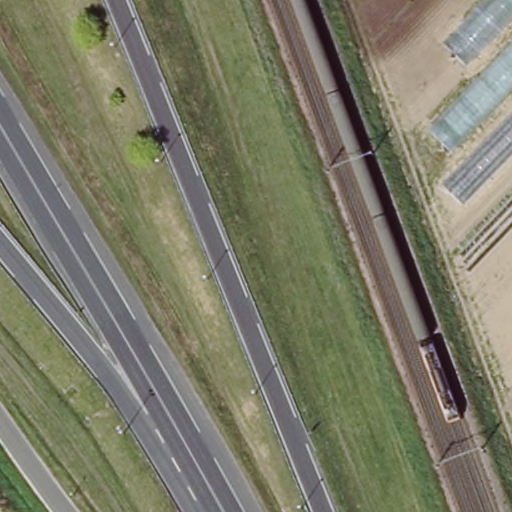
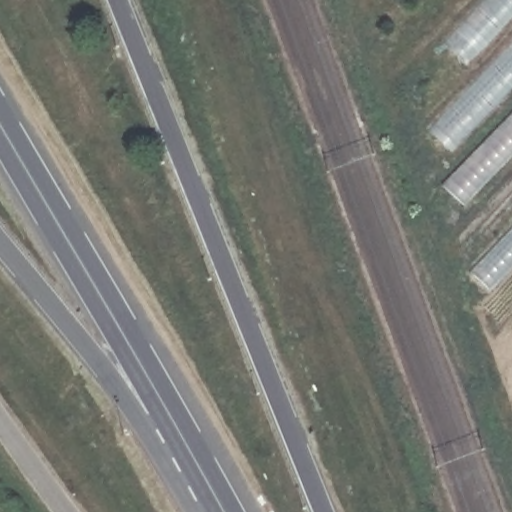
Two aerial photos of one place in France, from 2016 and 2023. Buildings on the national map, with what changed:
unchanged [(485,0),(512,0),(512,15),(464,65),(443,44),(485,0)]
unchanged [(512,43),(512,87),(449,152),(429,131),(512,43)]
unchanged [(512,113),(512,157),(463,207),(441,186),(512,113)]
new [(512,226),(512,271),(490,294),(466,274),(512,226)]

